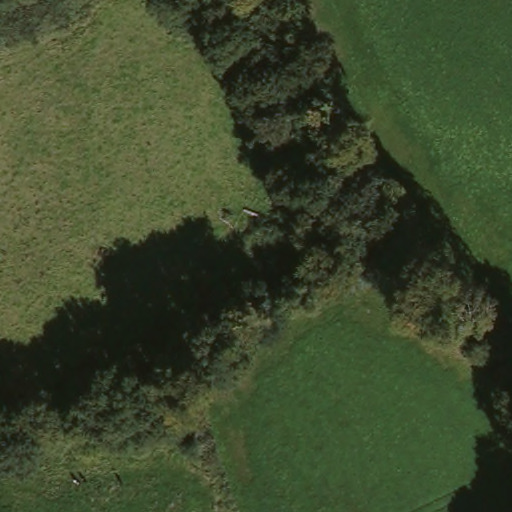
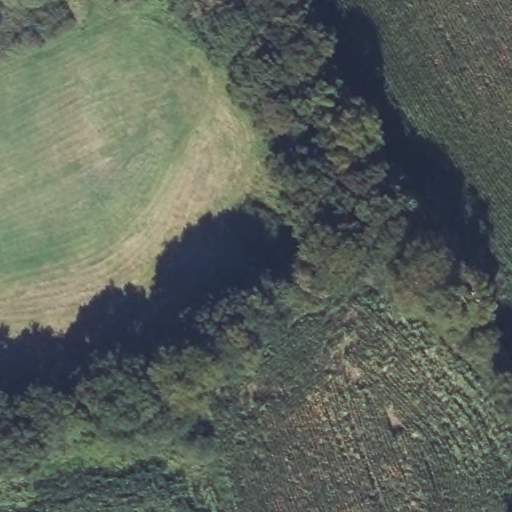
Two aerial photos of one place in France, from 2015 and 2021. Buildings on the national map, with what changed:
[]

